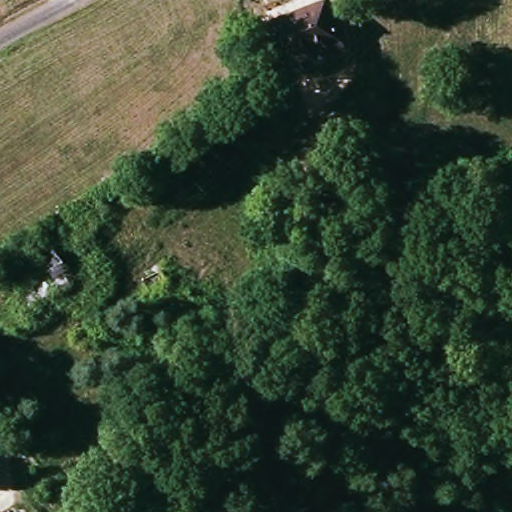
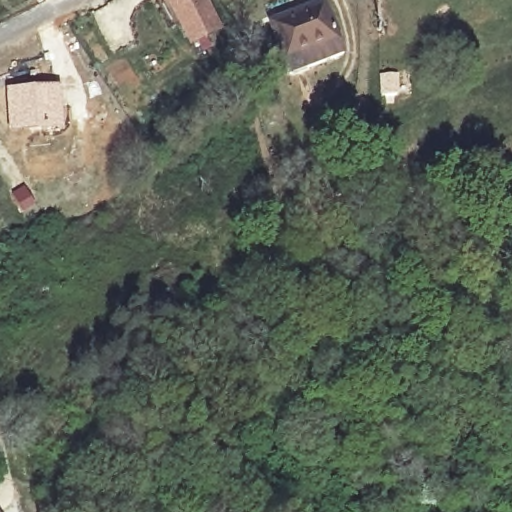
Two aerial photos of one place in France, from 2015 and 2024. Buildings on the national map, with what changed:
new [(190,41),(170,0),(202,0),(216,29),(190,41)]
unchanged [(292,74),(275,18),(320,5),(335,61),(292,74)]
new [(61,85),(65,130),(8,131),(7,87),(61,85)]
unchanged [(17,307),(0,279),(0,273),(49,244),(68,277),(17,307)]

